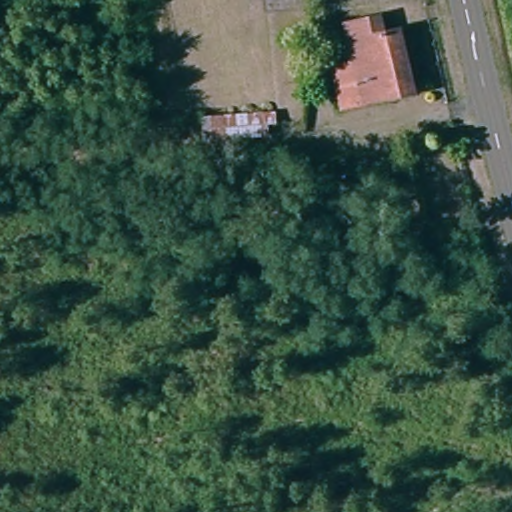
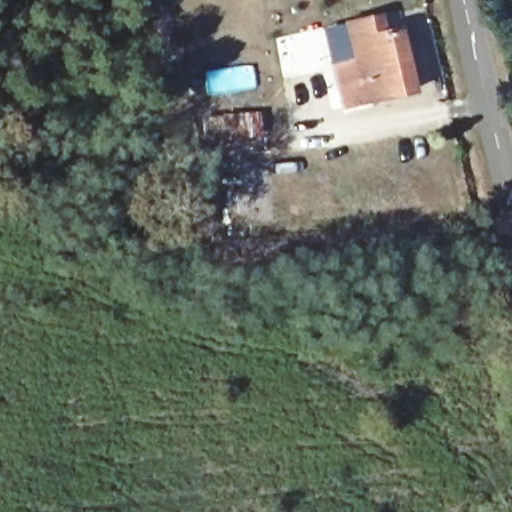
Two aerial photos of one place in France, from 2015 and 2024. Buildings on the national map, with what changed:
unchanged [(342,78),(357,75),(343,10),(374,4),(382,35),(404,29),(417,92),(348,106),(342,78)]
unchanged [(276,139),(205,142),(204,111),(276,107),(276,139)]

